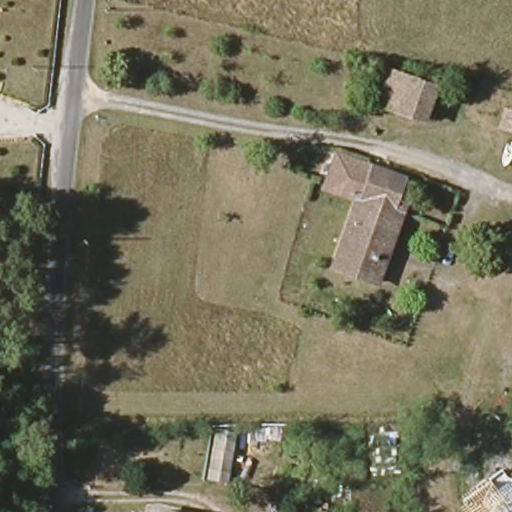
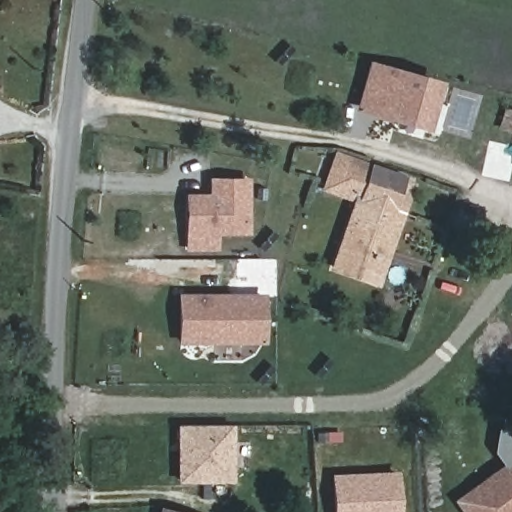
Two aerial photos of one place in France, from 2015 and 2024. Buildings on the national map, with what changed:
new [(368,67),(428,84),(416,125),(356,108),(368,67)]
demolished [(382,73),(435,89),(426,119),(376,105),(382,73)]
unchanged [(501,106),(512,110),(512,135),(496,129),(501,106)]
unchanged [(354,202),(321,190),(334,151),(367,162),(354,202)]
unchanged [(354,202),(367,162),(408,176),(400,200),(409,204),(381,284),(333,268),(354,202)]
new [(184,195),(208,195),(209,178),(243,178),(243,230),(242,230),(214,230),(214,245),(184,245),(184,230),(184,195)]
new [(265,344),(180,344),(179,292),(264,293),(265,344)]
new [(233,426),(232,482),(180,483),(179,427),(233,426)]
new [(512,463),(512,481),(503,470),(512,463)]
unchanged [(502,469),(512,481),(512,512),(468,512),(460,500),(502,469)]
new [(399,471),(401,512),(334,512),(331,474),(399,471)]

